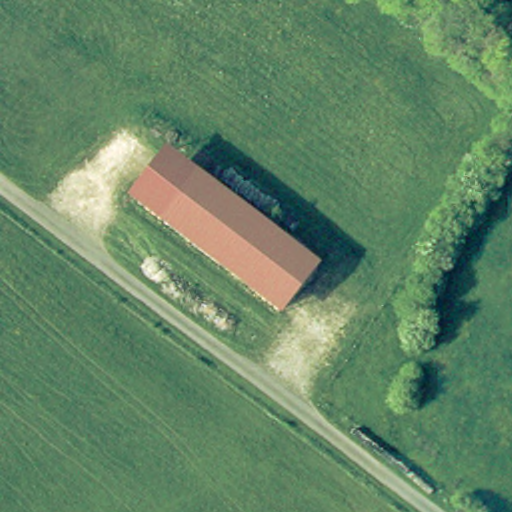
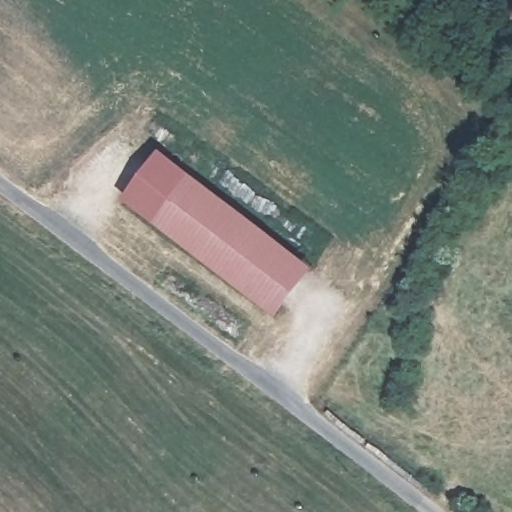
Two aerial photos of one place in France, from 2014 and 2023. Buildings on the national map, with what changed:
unchanged [(310,264),(273,311),(125,193),(162,147),(310,264)]

